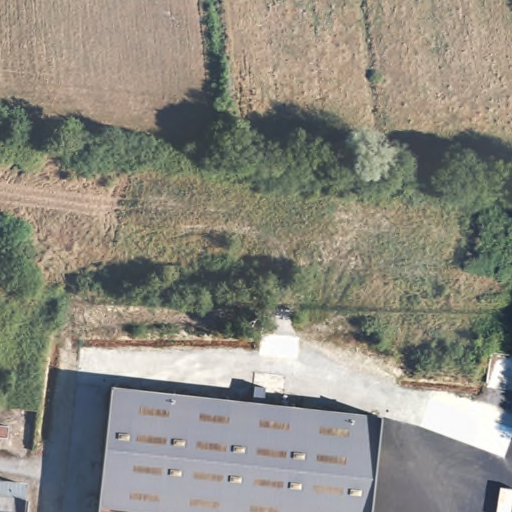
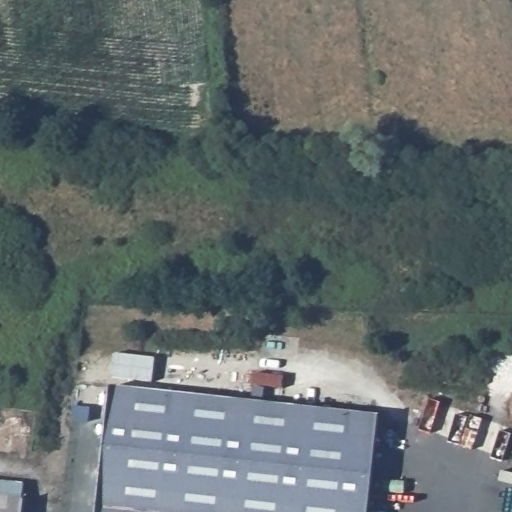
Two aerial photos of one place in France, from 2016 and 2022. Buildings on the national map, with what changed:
unchanged [(379,423),(369,512),(96,512),(110,393),(379,423)]
unchanged [(19,506),(0,503),(0,486),(20,489),(19,506)]
unchanged [(18,512),(0,512),(0,503),(19,506),(18,512)]

